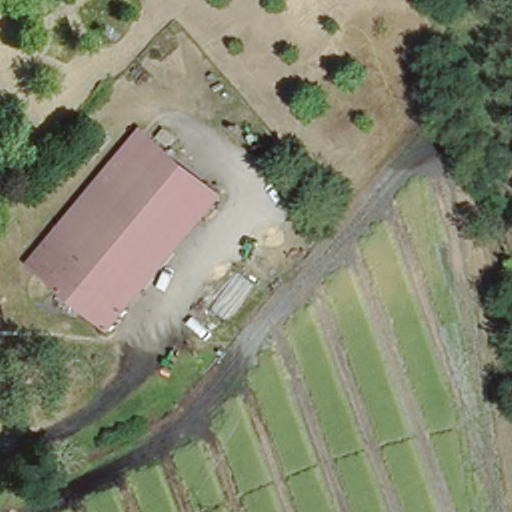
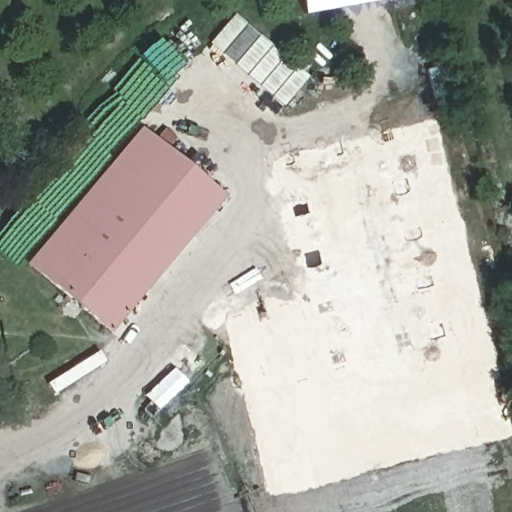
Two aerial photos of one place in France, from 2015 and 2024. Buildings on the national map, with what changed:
new [(305,15),(303,0),(388,0),(305,15)]
unchanged [(112,332),(26,264),(141,127),(223,193),(112,332)]

